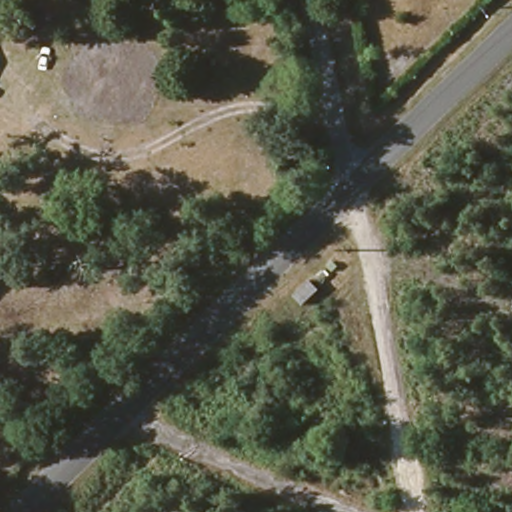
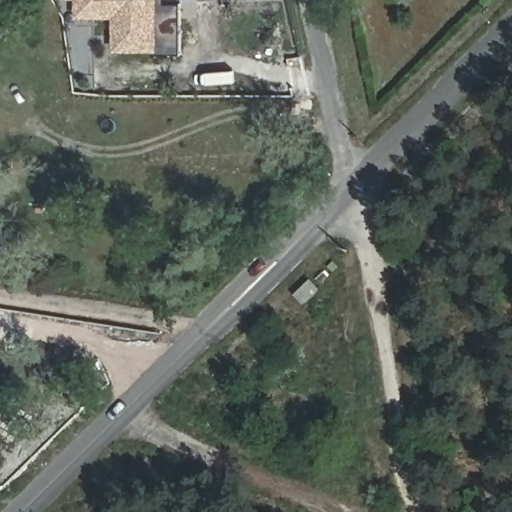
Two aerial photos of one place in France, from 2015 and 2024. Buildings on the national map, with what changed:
new [(180,4),(180,52),(114,51),(115,18),(76,17),(76,0),(164,0),(165,4),(180,4)]
new [(305,304),(295,295),(311,279),(320,289),(305,304)]
unchanged [(280,330),(271,321),(287,305),(296,315),(280,330)]

